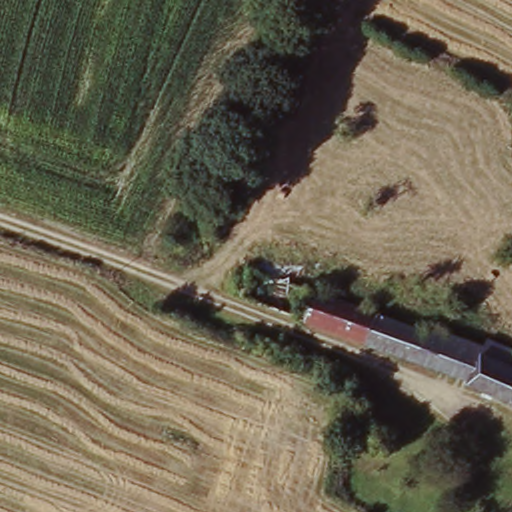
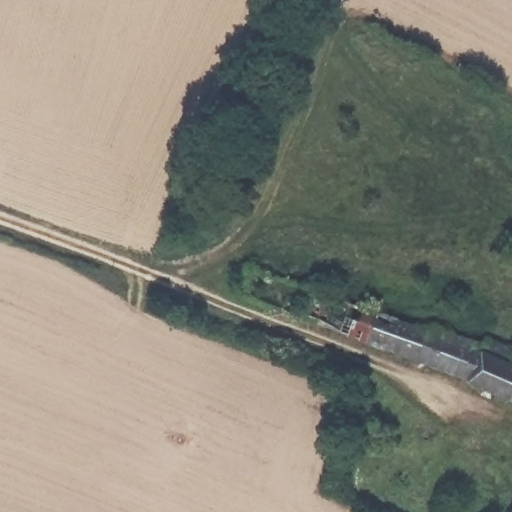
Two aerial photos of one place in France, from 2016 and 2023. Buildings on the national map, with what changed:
unchanged [(312,291),(316,280),(342,290),(338,300),(428,333),(418,362),(244,298),(254,271),(312,291)]
unchanged [(428,333),(430,327),(487,348),(475,382),(418,362),(428,333)]
unchanged [(490,341),(512,350),(512,403),(472,389),(475,382),(487,348),(490,341)]

